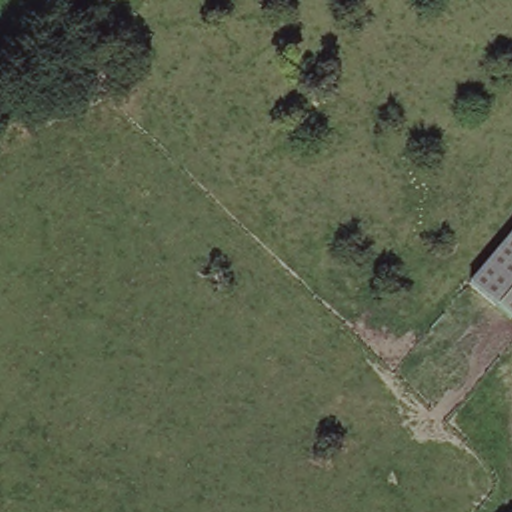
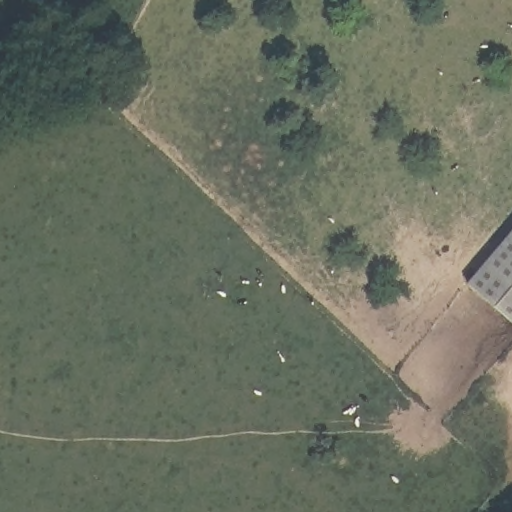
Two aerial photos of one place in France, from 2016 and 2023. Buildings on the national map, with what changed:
unchanged [(512,234),(512,319),(469,283),(512,234)]

